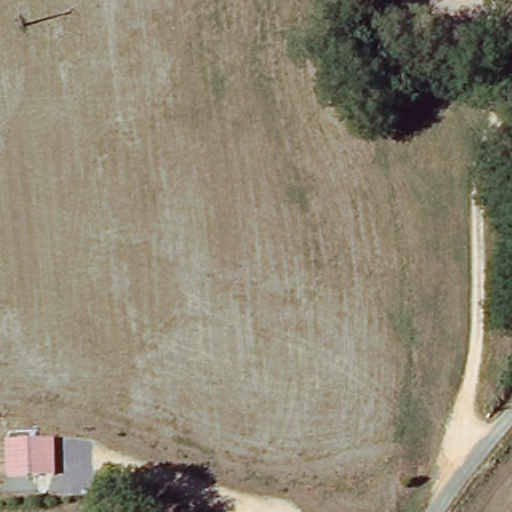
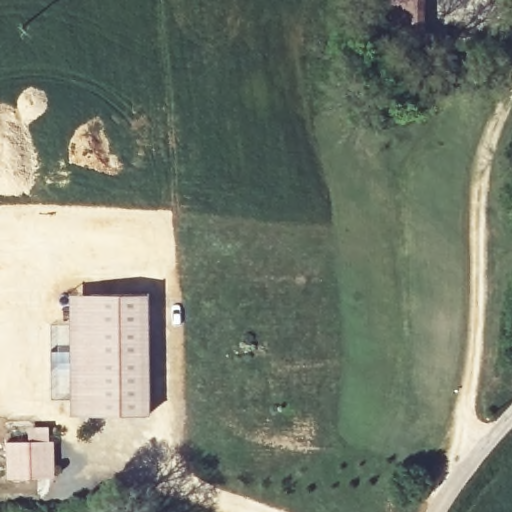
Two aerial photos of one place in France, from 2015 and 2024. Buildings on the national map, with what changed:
new [(394,0),(426,0),(426,32),(394,32),(394,0)]
new [(88,295),(89,416),(69,416),(68,295),(88,295)]
new [(145,295),(146,415),(89,416),(88,295),(145,295)]
unchanged [(5,440),(54,440),(55,477),(6,477),(5,440)]

